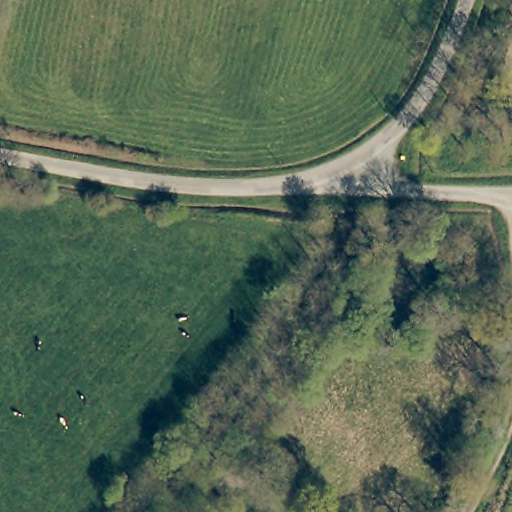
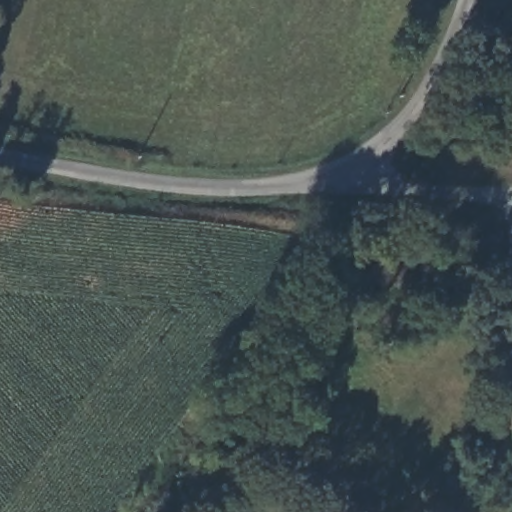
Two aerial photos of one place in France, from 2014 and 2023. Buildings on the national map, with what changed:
[]

